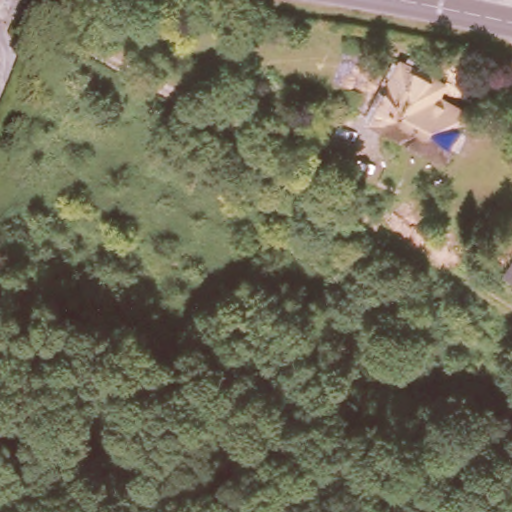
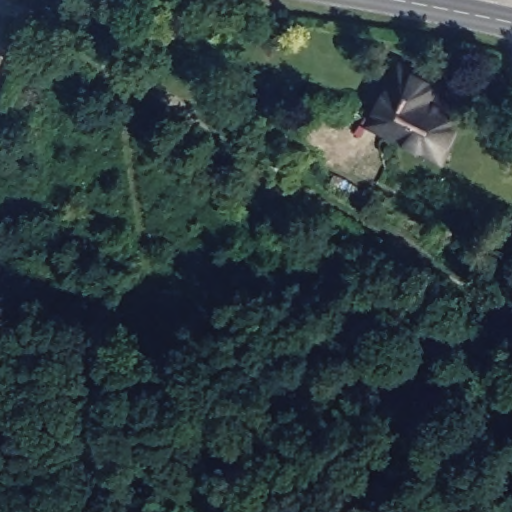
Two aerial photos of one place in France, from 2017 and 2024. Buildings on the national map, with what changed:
unchanged [(387,89),(391,86),(393,84),(395,80),(396,76),(397,70),(399,70),(399,73),(424,85),(427,84),(430,85),(432,86),(434,89),(434,91),(434,94),(427,105),(427,108),(428,109),(430,110),(437,114),(437,113),(440,111),(442,111),(445,112),(459,119),(443,149),(441,151),(438,153),(436,153),(432,151),(404,138),(402,139),(400,139),(397,139),(395,139),(352,117),(371,81),(387,89)]

